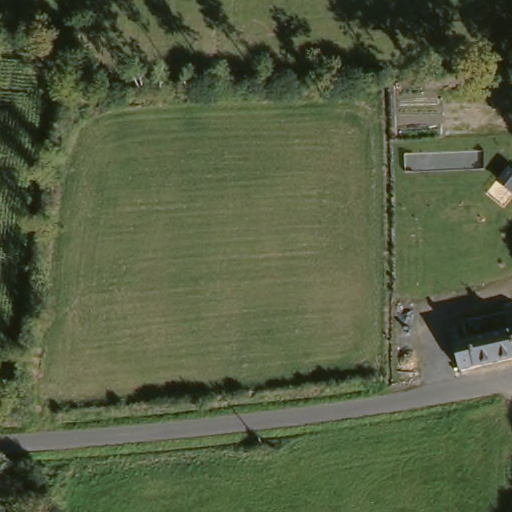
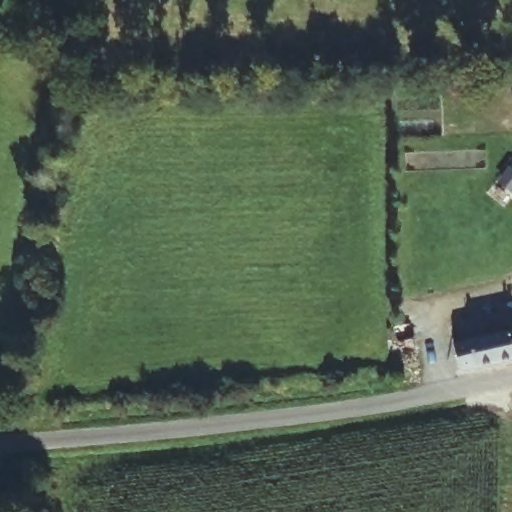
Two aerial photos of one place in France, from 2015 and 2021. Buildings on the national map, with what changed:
unchanged [(453,338),(512,325),(512,358),(456,371),(453,338)]

